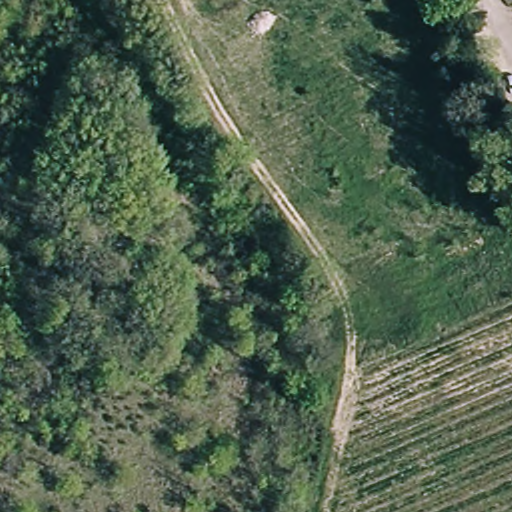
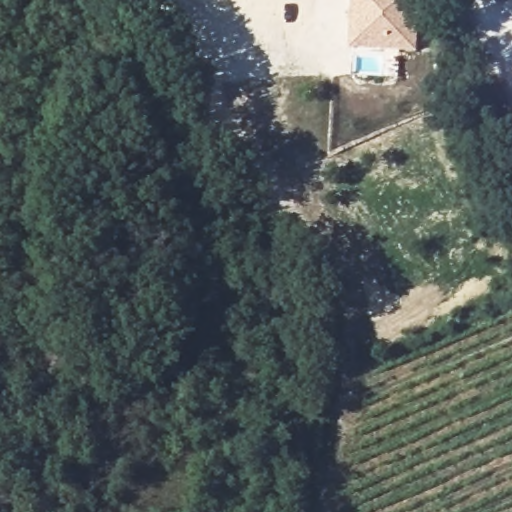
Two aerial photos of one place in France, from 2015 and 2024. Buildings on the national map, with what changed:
new [(350,47),(352,0),(421,0),(418,51),(350,47)]

